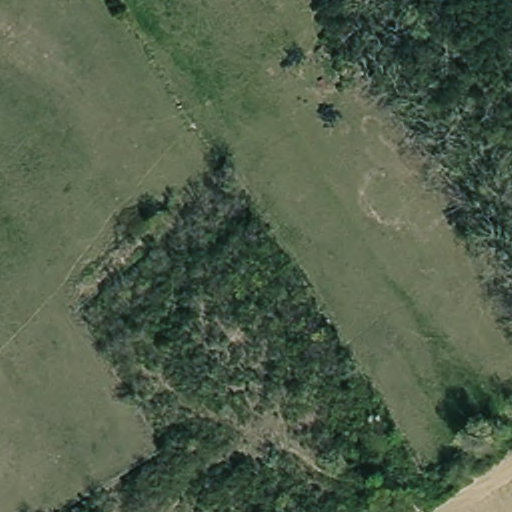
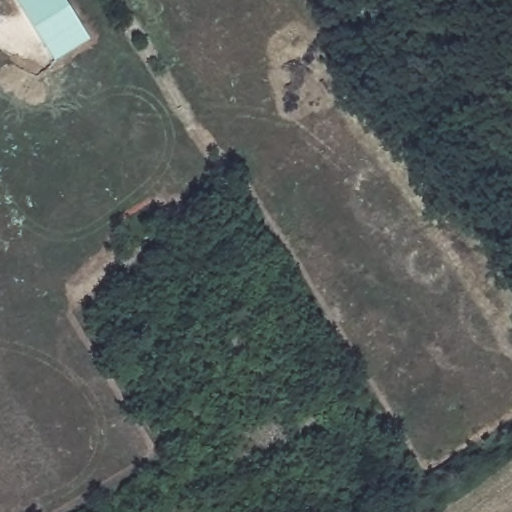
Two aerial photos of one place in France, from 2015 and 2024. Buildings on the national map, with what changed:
new [(55,61),(17,0),(65,0),(90,39),(55,61)]

